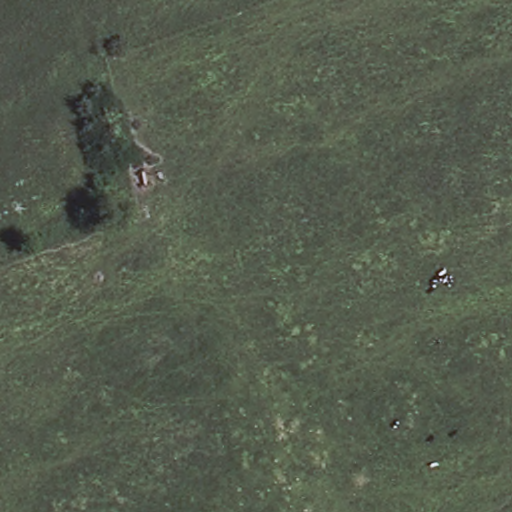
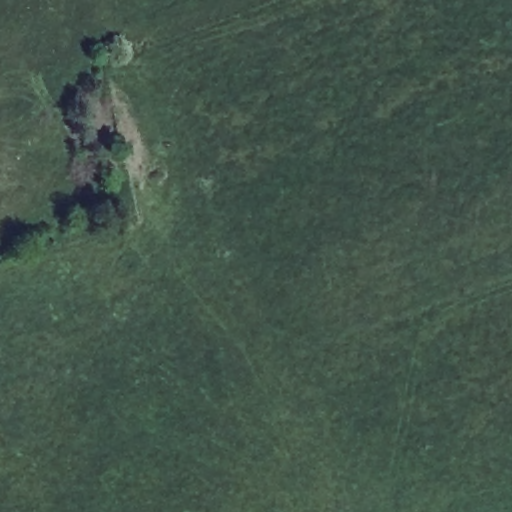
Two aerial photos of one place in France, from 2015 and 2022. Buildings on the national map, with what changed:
[]

